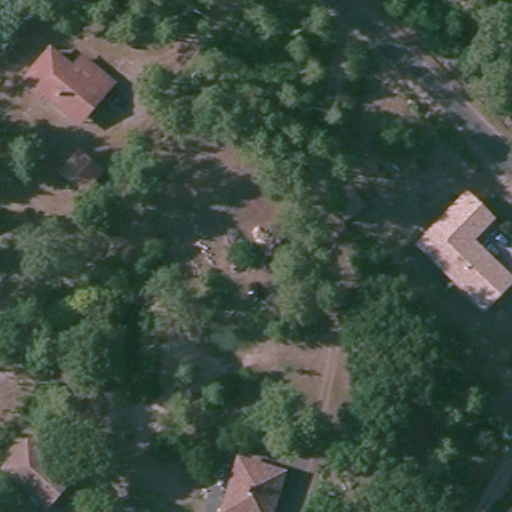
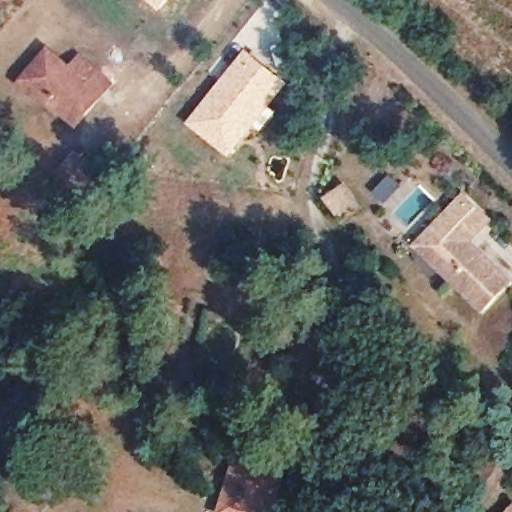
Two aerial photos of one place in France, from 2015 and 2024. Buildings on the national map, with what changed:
new [(159,9),(148,0),(167,0),(159,9)]
new [(244,48),(289,82),(270,105),(276,110),(259,132),(252,127),(228,157),(185,123),(244,48)]
unchanged [(72,122),(52,105),(46,110),(18,85),(44,55),(72,80),(82,68),(111,92),(100,104),(79,129),(72,122)]
new [(345,186),(360,209),(345,219),(330,196),(345,186)]
unchanged [(476,234),(469,241),(475,247),(511,281),(484,309),(436,264),(417,246),(451,210),(465,196),(490,220),(476,234)]
unchanged [(40,511),(0,472),(0,468),(22,444),(64,486),(40,511)]
unchanged [(255,465),(283,476),(270,512),(222,512),(238,461),(255,465)]

